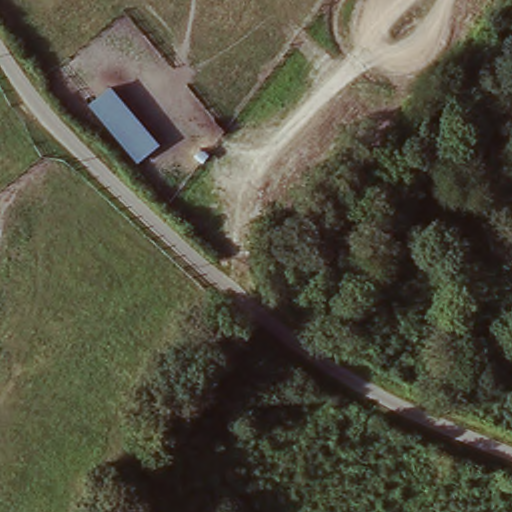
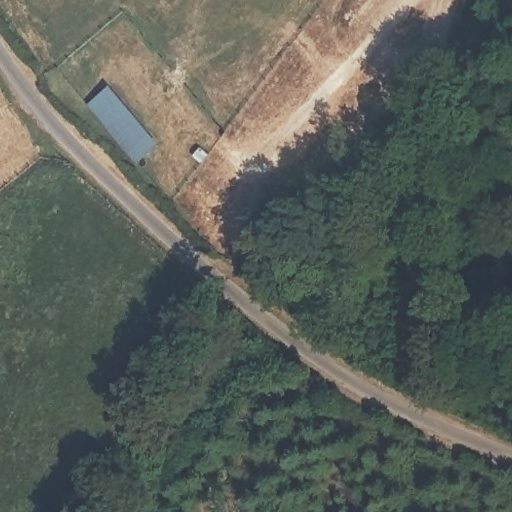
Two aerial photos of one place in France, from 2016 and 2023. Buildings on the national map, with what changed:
unchanged [(95,105),(114,89),(161,147),(143,162),(95,105)]

